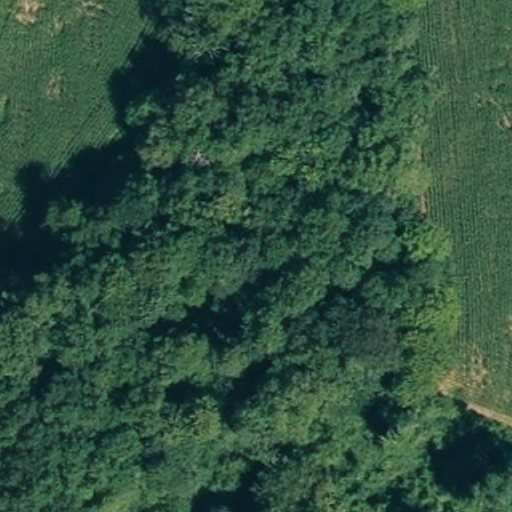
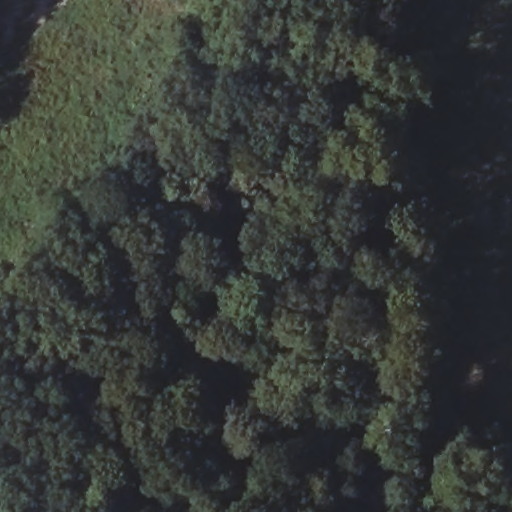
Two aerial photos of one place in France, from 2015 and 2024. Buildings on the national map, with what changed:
[]

